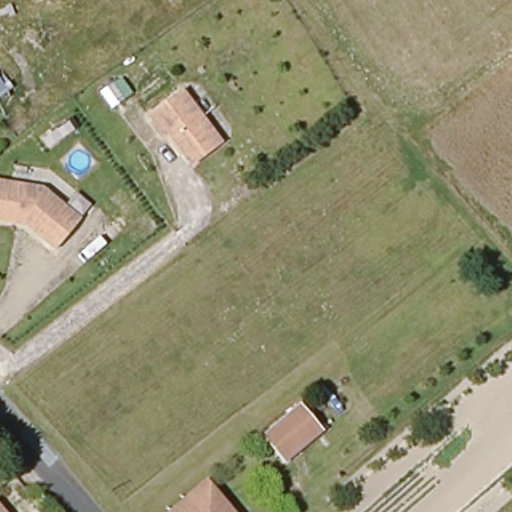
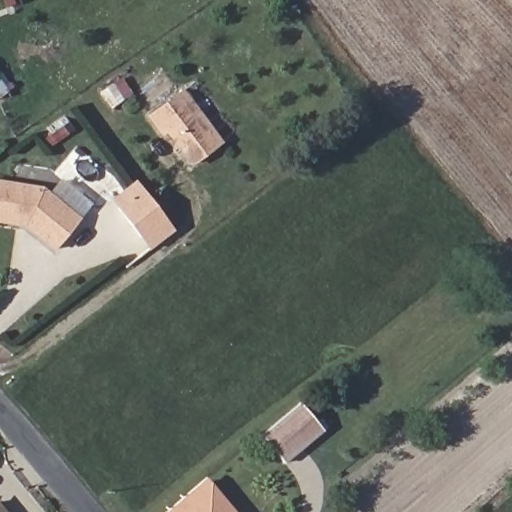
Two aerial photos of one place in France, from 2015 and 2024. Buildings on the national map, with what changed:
unchanged [(183,93),(222,143),(195,166),(168,134),(165,136),(151,119),(183,93)]
unchanged [(82,219),(56,250),(26,227),(0,222),(0,181),(43,189),(82,219)]
new [(149,250),(111,201),(136,182),(174,231),(149,250)]
unchanged [(301,403),(325,433),(286,464),(263,437),(301,403)]
unchanged [(207,487),(229,512),(179,512),(207,487)]
unchanged [(4,512),(0,512),(0,507),(4,512)]

